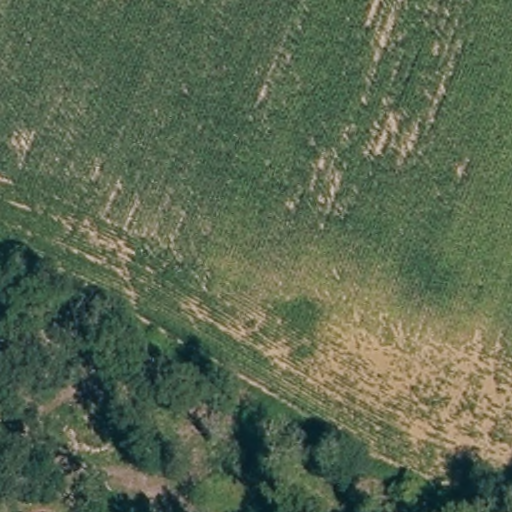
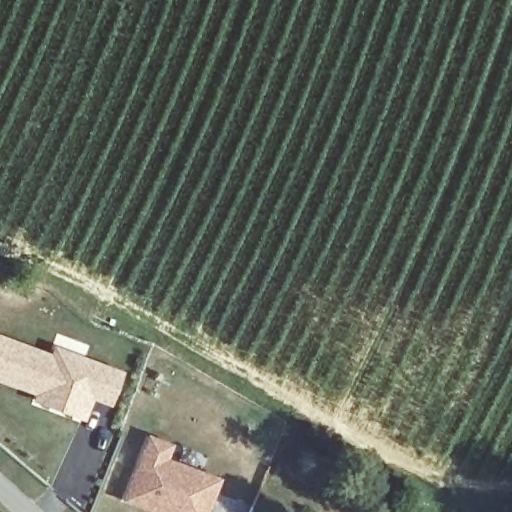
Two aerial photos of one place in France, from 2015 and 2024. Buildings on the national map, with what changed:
new [(49,353),(51,345),(121,371),(109,406),(90,400),(82,421),(30,404),(35,395),(0,383),(0,335),(49,353)]
new [(168,460),(220,478),(208,512),(150,512),(122,501),(147,435),(174,445),(168,460)]

